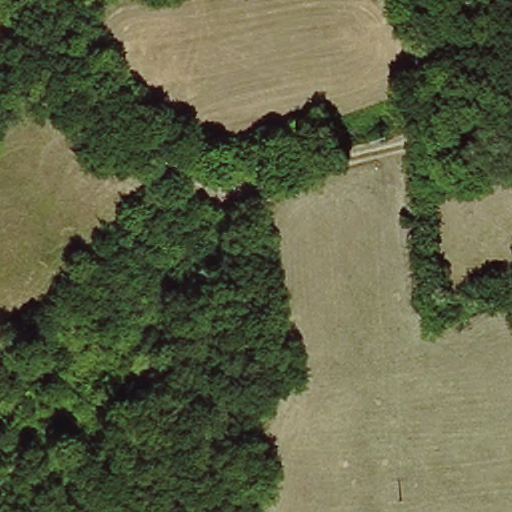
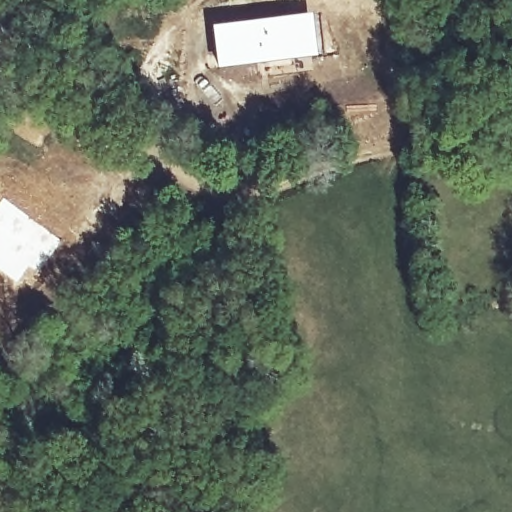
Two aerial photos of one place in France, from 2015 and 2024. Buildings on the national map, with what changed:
new [(313,13),(317,57),(216,69),(211,26),(313,13)]

